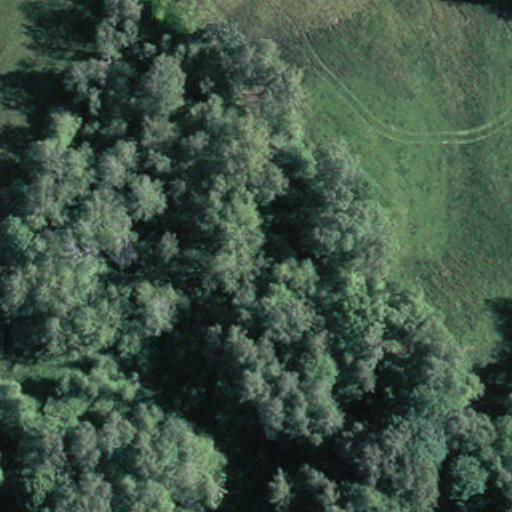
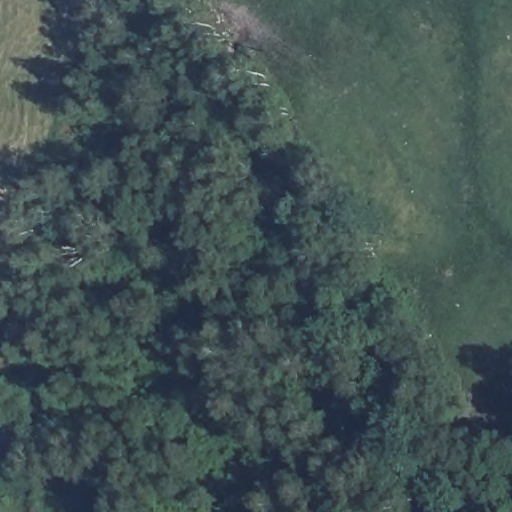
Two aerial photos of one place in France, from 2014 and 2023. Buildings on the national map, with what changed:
[]

